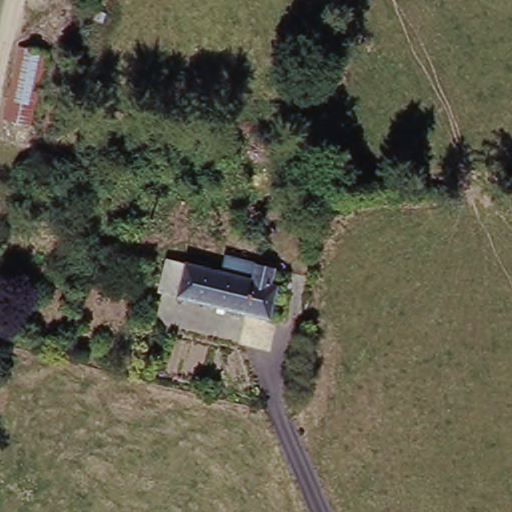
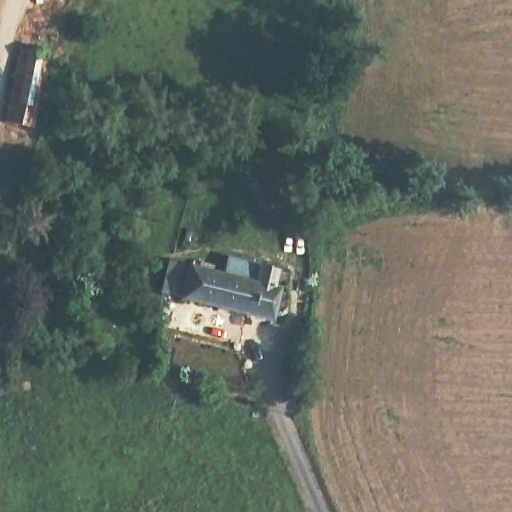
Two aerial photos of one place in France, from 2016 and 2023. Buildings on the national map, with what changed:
unchanged [(27,52),(54,58),(30,153),(2,144),(27,52)]
unchanged [(278,292),(286,295),(279,323),(186,306),(169,303),(175,272),(192,275),(226,282),(228,267),(229,262),(282,272),(278,292)]

